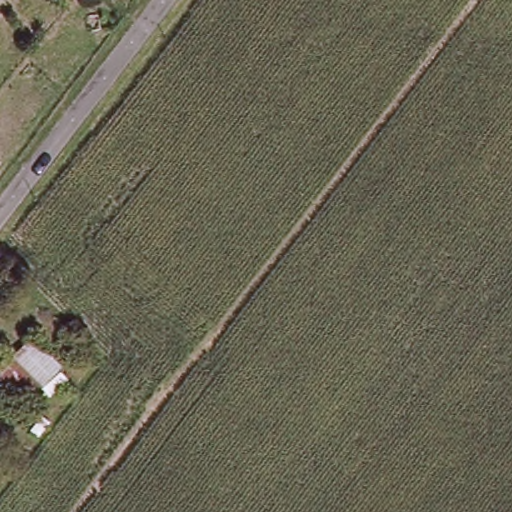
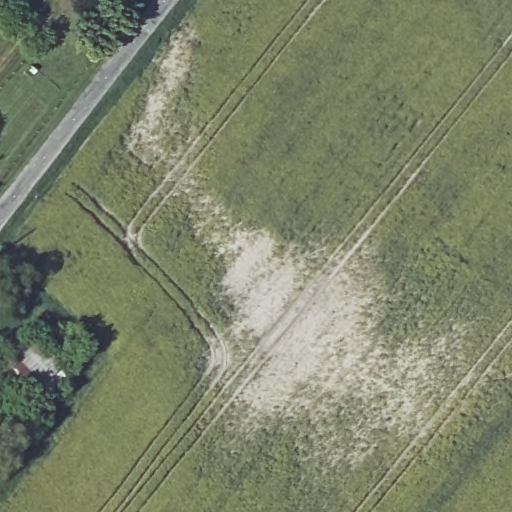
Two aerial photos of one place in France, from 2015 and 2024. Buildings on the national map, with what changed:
unchanged [(21,411),(0,391),(0,368),(26,340),(58,368),(21,411)]

